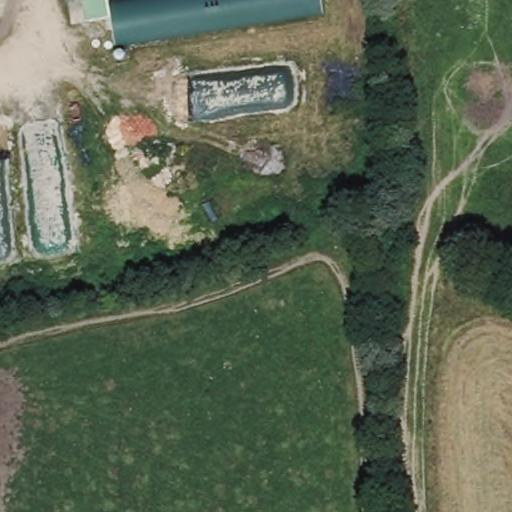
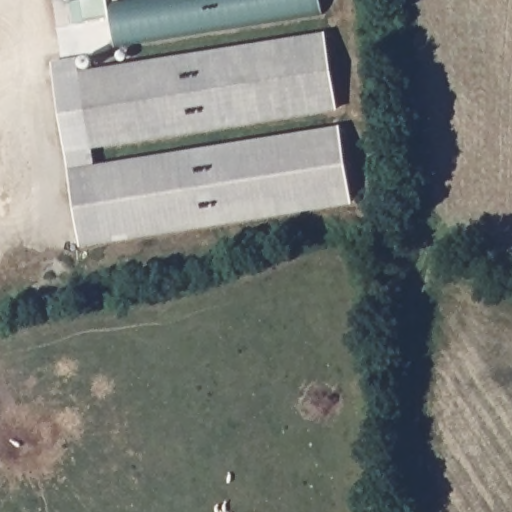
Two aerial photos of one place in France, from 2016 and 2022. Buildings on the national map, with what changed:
unchanged [(108,11),(83,14),(81,0),(318,0),(320,19),(111,40),(108,11)]
new [(78,58),(94,56),(95,67),(328,32),(340,111),(92,149),(95,165),(342,126),(355,205),(81,247),(51,61),(78,58)]

